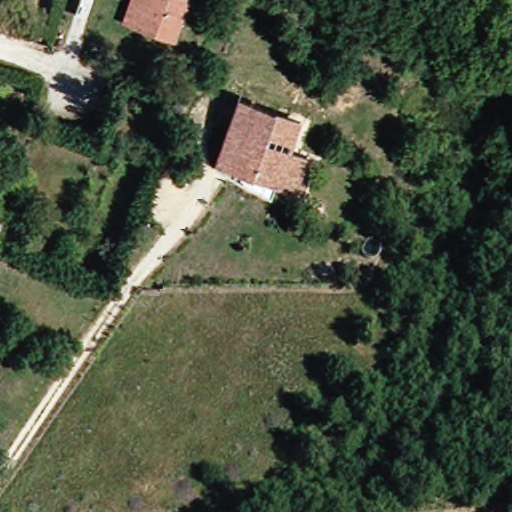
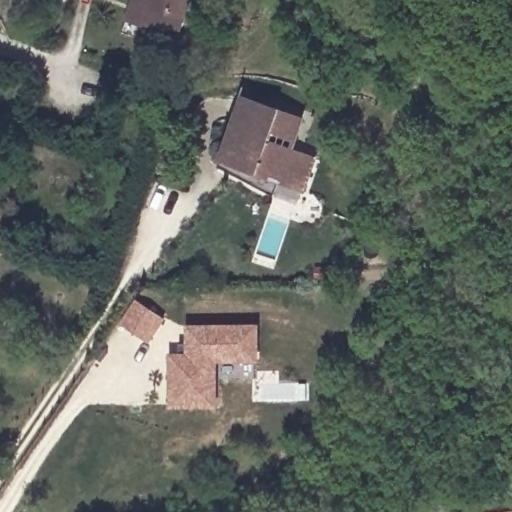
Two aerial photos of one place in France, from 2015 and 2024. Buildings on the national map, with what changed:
unchanged [(197,0),(186,34),(150,23),(135,19),(141,0),(197,0)]
unchanged [(305,117),(295,149),(317,156),(305,192),(216,162),(241,95),(305,117)]
new [(150,345),(122,325),(139,300),(167,320),(150,345)]
new [(170,353),(186,352),(185,325),(260,323),(260,362),(218,363),(218,407),(170,406),(170,353)]

